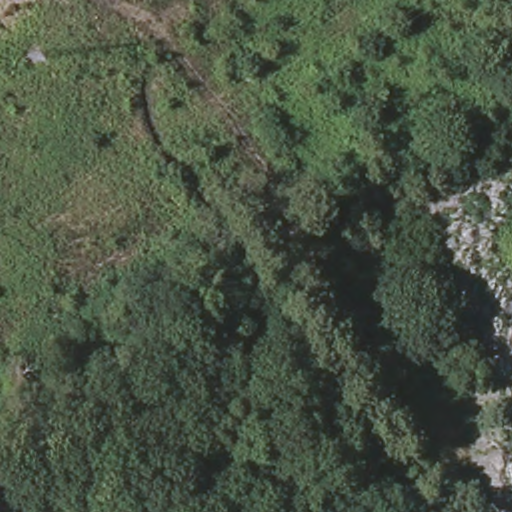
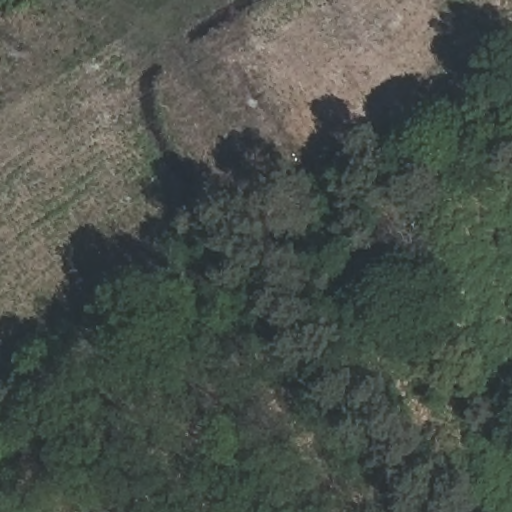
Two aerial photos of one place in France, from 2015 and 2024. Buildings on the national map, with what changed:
[]

